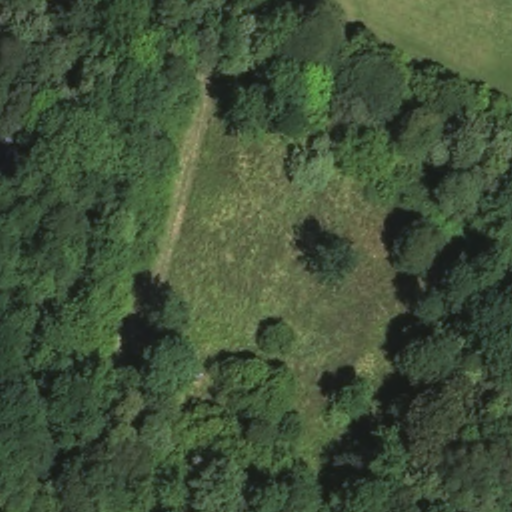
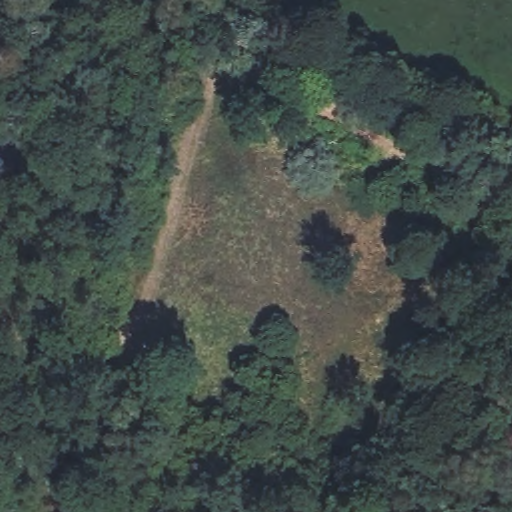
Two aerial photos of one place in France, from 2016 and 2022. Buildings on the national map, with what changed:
unchanged [(19,146),(5,187),(0,185),(0,142),(19,146)]

